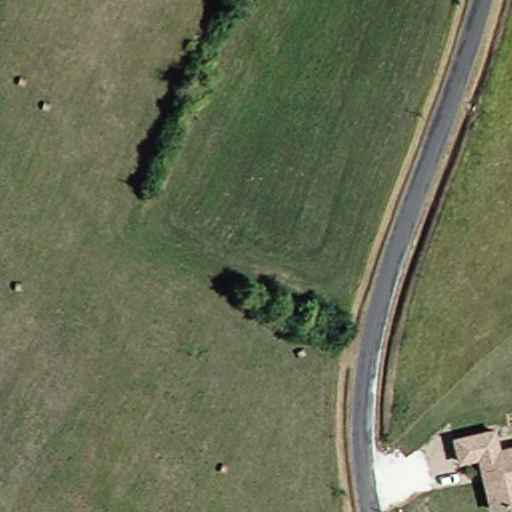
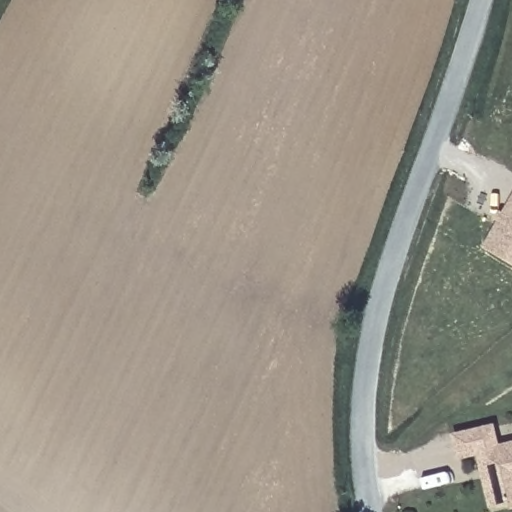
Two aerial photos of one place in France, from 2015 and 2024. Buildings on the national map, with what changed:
new [(486,248),(512,205),(512,263),(486,248)]
unchanged [(492,506),(477,453),(458,458),(452,436),(491,426),(497,448),(512,444),(512,501),(492,506)]

